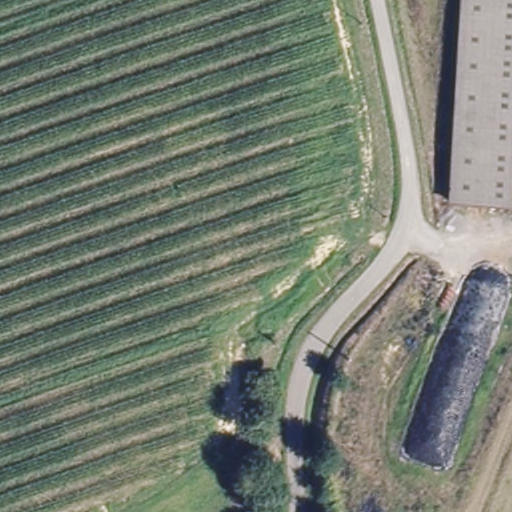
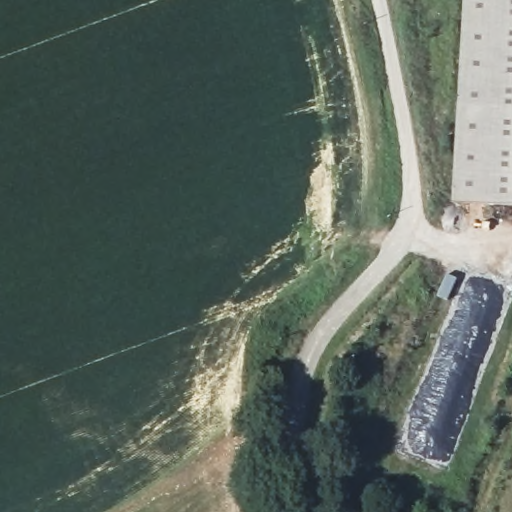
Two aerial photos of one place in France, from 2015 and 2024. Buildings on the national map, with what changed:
unchanged [(460,0),(512,0),(512,200),(449,197),(460,0)]

